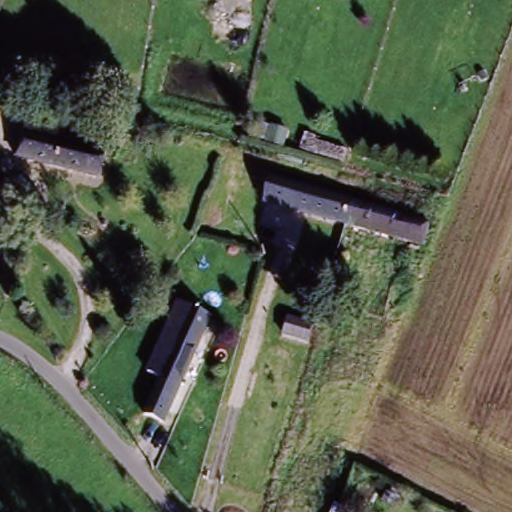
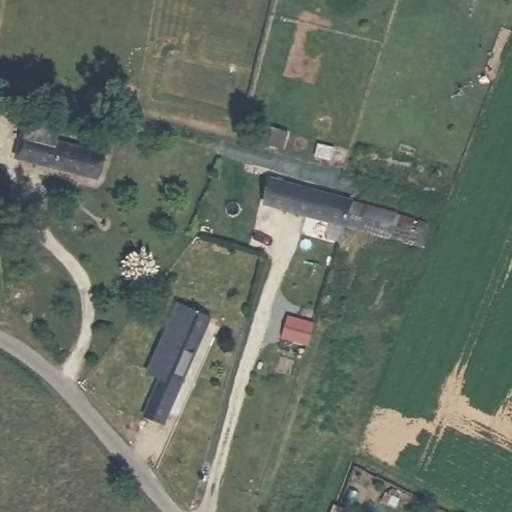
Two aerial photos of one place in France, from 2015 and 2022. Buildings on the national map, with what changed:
unchanged [(92,180),(18,160),(24,131),(98,151),(92,180)]
unchanged [(349,229),(279,211),(289,174),(359,191),(349,229)]
unchanged [(406,215),(434,222),(427,249),(349,229),(359,191),(409,202),(406,215)]
unchanged [(165,354),(176,327),(203,340),(164,427),(136,415),(153,376),(141,371),(151,348),(165,354)]
unchanged [(331,502),(350,509),(349,512),(327,512),(331,502)]

